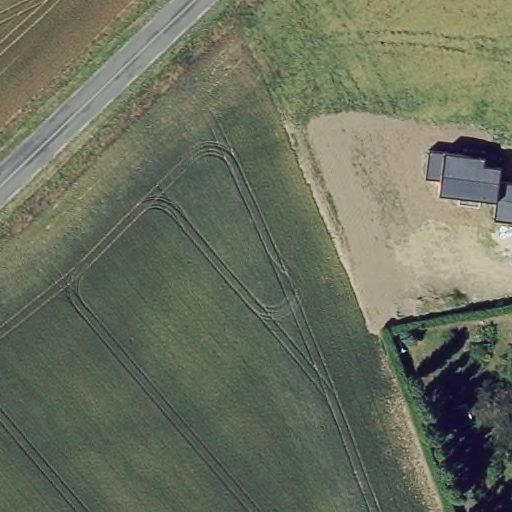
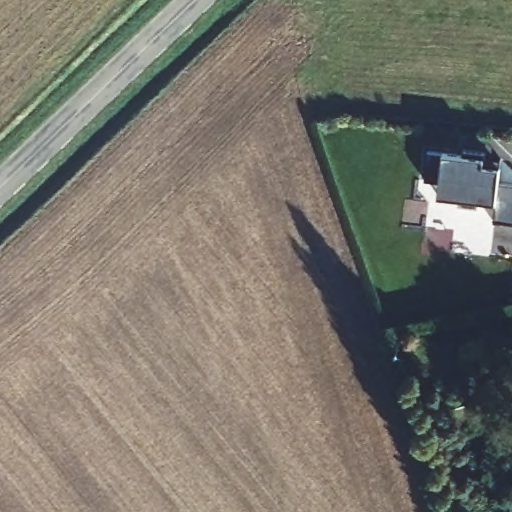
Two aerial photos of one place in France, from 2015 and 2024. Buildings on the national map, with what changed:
unchanged [(500,161),(499,183),(512,185),(512,223),(495,220),(496,202),(438,195),(440,181),(427,179),(430,152),(500,161)]

